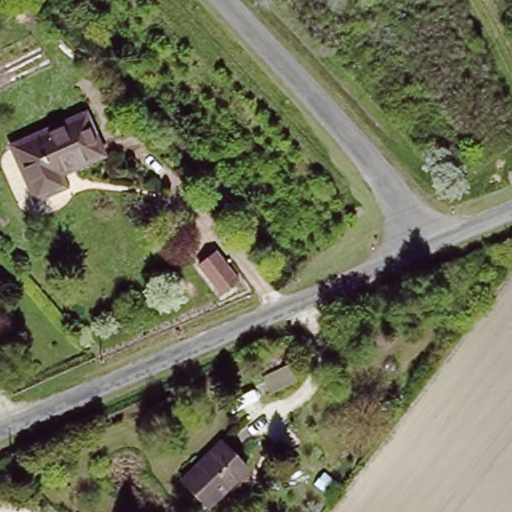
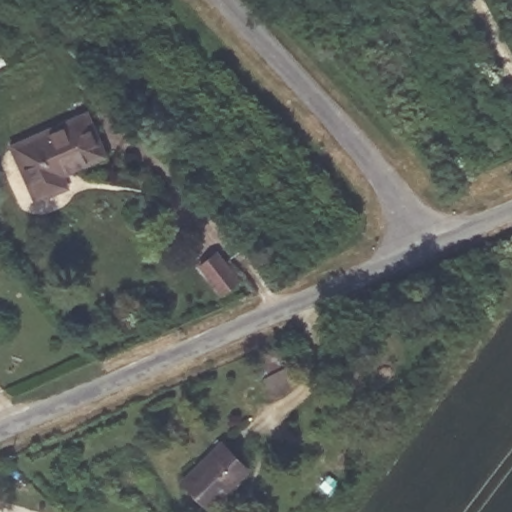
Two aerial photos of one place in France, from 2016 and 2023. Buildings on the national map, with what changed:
unchanged [(90,108),(110,154),(69,173),(75,185),(40,200),(14,142),(90,108)]
unchanged [(221,248),(245,281),(222,298),(200,266),(221,248)]
unchanged [(220,440),(247,466),(210,504),(184,478),(220,440)]

